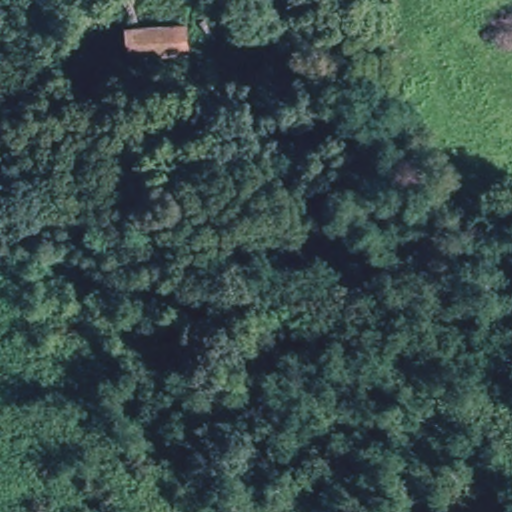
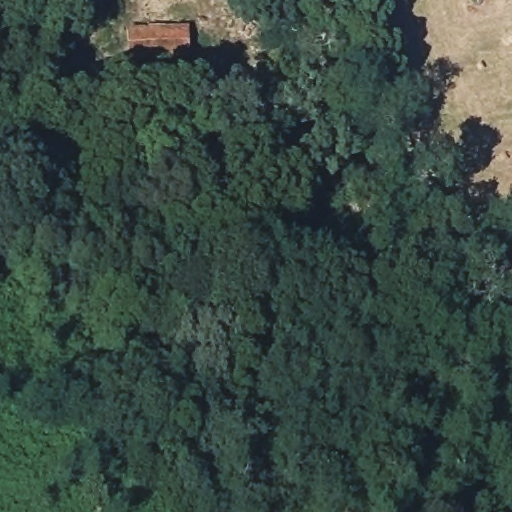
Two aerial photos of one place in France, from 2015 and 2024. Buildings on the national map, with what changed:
unchanged [(127,21),(175,18),(175,57),(125,63),(127,21)]

